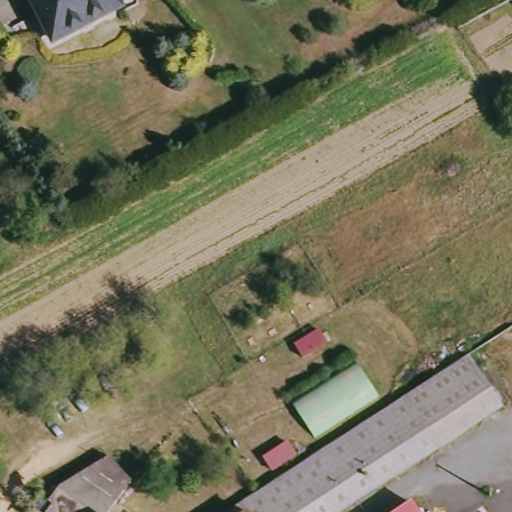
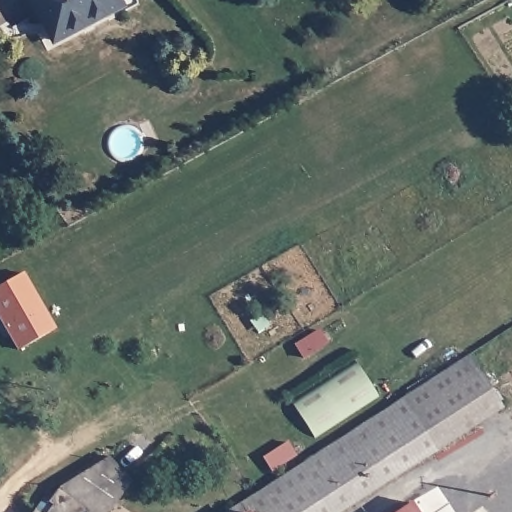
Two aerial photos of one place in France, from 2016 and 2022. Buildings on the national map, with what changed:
unchanged [(55,40),(35,0),(120,0),(122,5),(55,40)]
new [(18,335),(10,338),(0,318),(0,285),(27,271),(58,326),(25,344),(18,335)]
unchanged [(463,355),(497,406),(492,409),(433,447),(400,396),(463,355)]
unchanged [(382,392),(315,435),(292,401),(358,357),(382,392)]
unchanged [(334,512),(221,512),(400,396),(433,447),(334,512)]
unchanged [(38,497),(42,500),(50,490),(103,456),(126,481),(105,512),(34,512),(29,508),(38,497)]
unchanged [(418,512),(396,512),(411,502),(418,512)]

